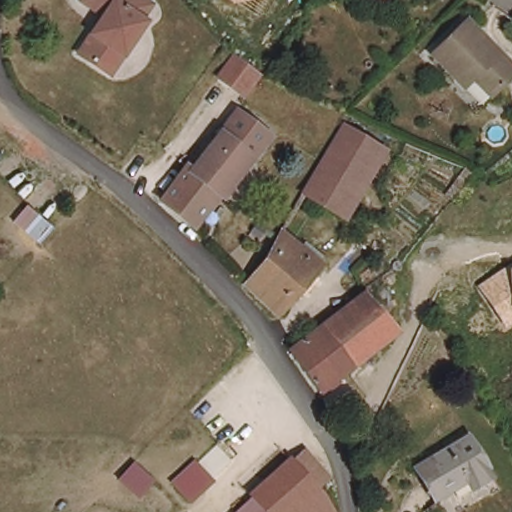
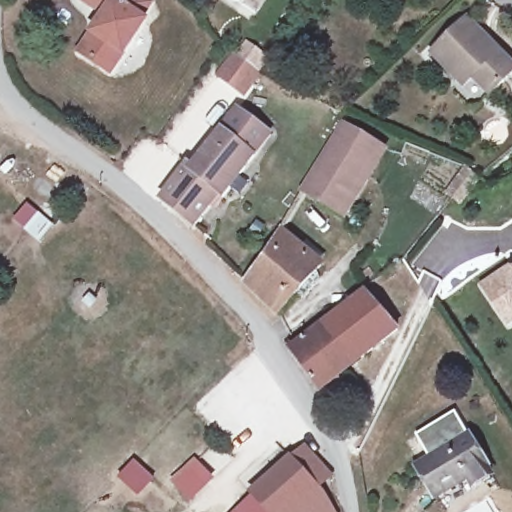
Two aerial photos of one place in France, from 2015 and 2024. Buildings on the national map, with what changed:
unchanged [(150,0),(140,15),(145,18),(109,73),(77,51),(105,11),(89,0),(150,0)]
unchanged [(224,0),(256,0),(231,5),(224,0)]
unchanged [(467,75),(456,86),(432,62),(470,23),(512,66),(512,75),(490,98),(467,75)]
unchanged [(261,76),(246,97),(219,78),(230,61),(237,51),(265,71),(261,76)]
unchanged [(165,196),(188,161),(197,166),(238,108),(272,133),(226,196),(222,193),(200,224),(165,196)]
unchanged [(386,148),(345,214),(309,188),(347,126),(386,148)]
unchanged [(487,175),(465,202),(456,195),(449,187),(471,162),(472,161),(479,168),(487,175)]
unchanged [(285,226),(325,263),(283,315),(251,281),(285,226)]
unchanged [(478,285),(512,261),(512,323),(505,327),(478,285)]
unchanged [(292,350),(366,289),(397,328),(320,390),(292,350)]
unchanged [(477,485),(470,475),(435,496),(418,467),(471,435),(494,475),(477,485)]
unchanged [(330,477),(318,489),(292,461),(305,448),(330,477)]
unchanged [(289,458),(339,512),(272,512),(255,492),(289,458)]
unchanged [(195,504),(171,482),(195,459),(216,480),(195,504)]
unchanged [(255,492),(272,512),(234,512),(255,492)]

